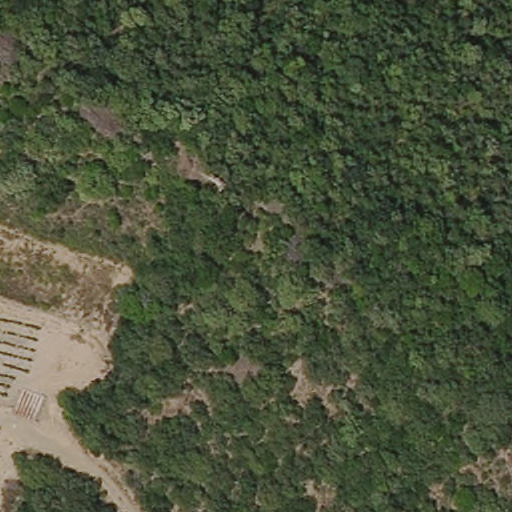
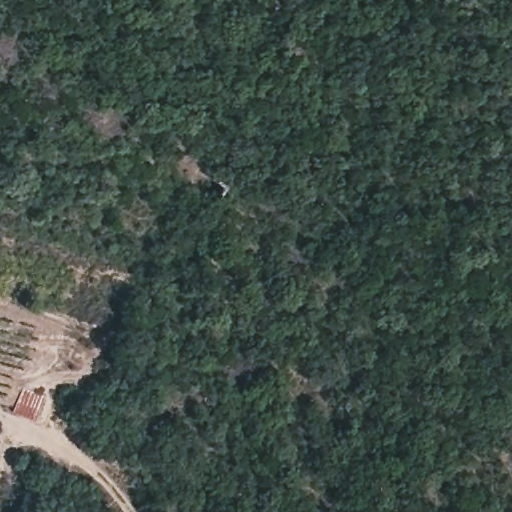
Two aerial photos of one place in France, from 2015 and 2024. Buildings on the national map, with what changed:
unchanged [(19,388),(42,397),(31,425),(12,415),(19,388)]

